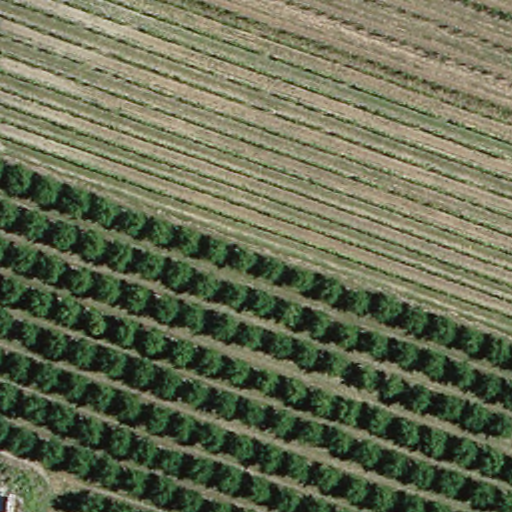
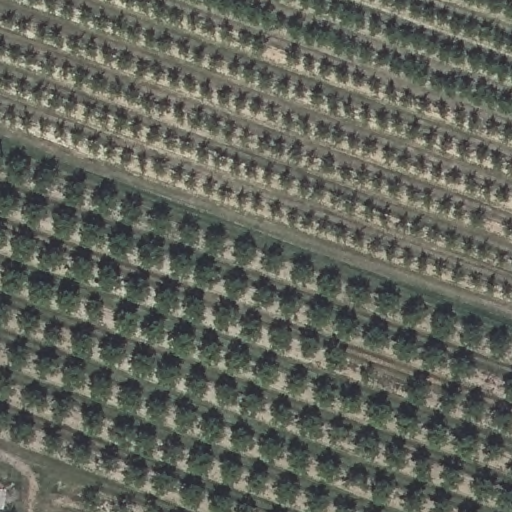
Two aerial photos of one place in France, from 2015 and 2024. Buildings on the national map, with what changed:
[]

